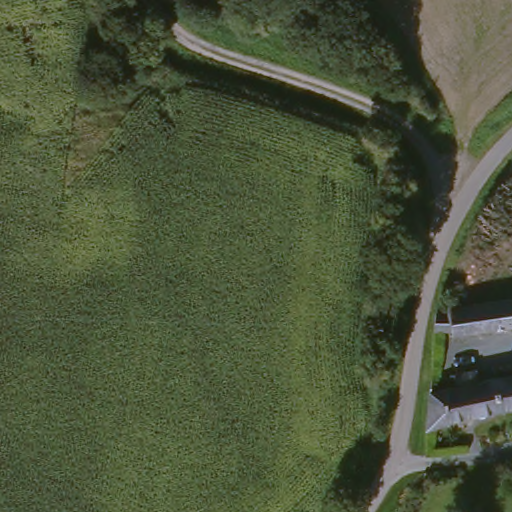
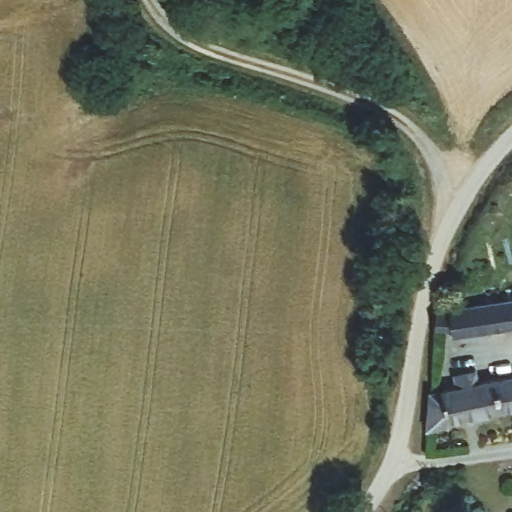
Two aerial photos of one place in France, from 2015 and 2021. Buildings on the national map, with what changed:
unchanged [(429,310),(436,309),(512,297),(512,323),(433,336),(429,310)]
unchanged [(424,414),(424,399),(428,398),(512,378),(512,407),(444,424),(444,434),(426,439),(424,414)]

